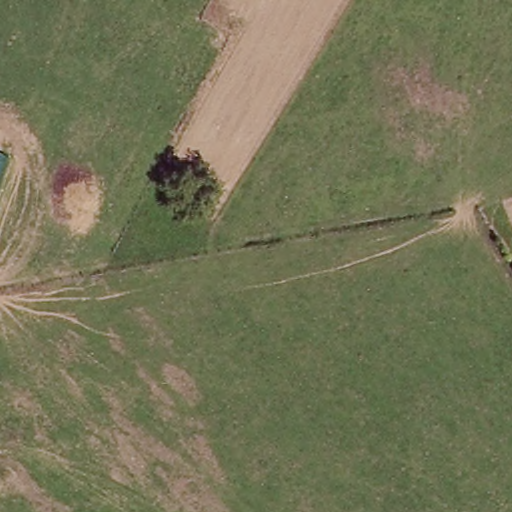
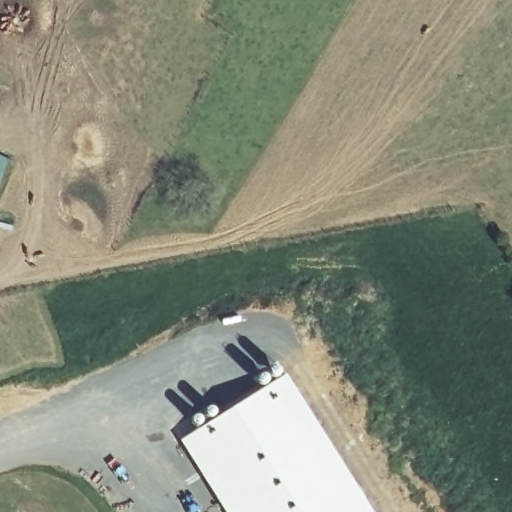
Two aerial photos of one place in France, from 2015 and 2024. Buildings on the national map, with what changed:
unchanged [(0,176),(0,158),(6,160),(0,176)]
new [(285,372),(373,512),(225,512),(178,439),(285,372)]

